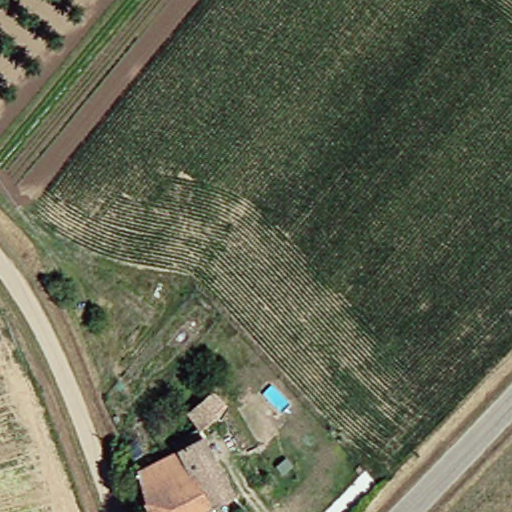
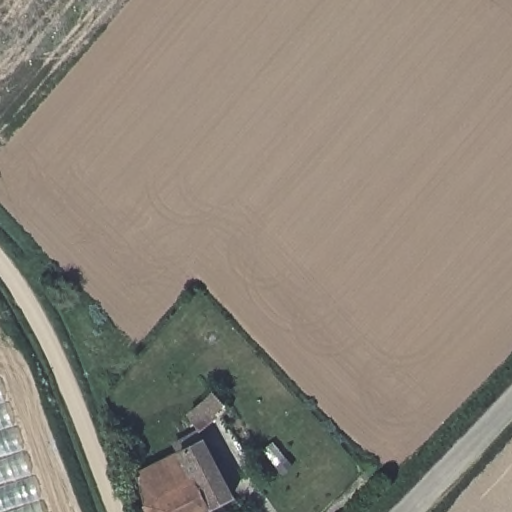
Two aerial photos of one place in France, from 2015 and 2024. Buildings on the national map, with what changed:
new [(45,512),(0,512),(0,381),(45,512)]
unchanged [(215,418),(208,408),(218,399),(226,409),(215,418)]
unchanged [(133,470),(201,442),(224,495),(186,512),(145,512),(138,498),(133,470)]

